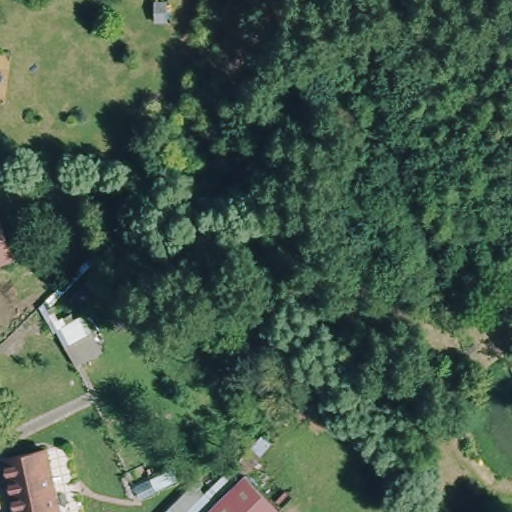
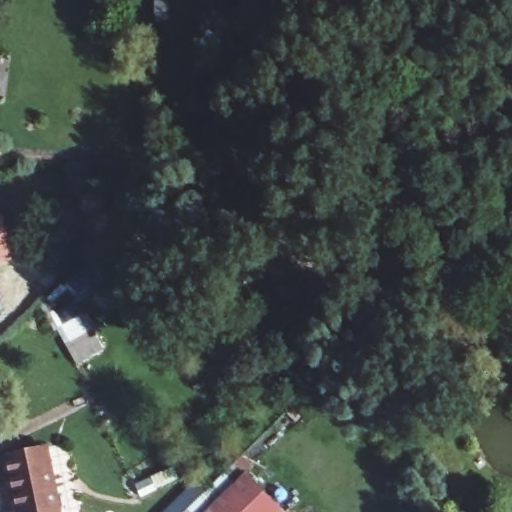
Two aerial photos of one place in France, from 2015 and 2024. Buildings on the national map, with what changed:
unchanged [(17,255),(0,260),(0,209),(1,209),(17,255)]
unchanged [(20,512),(10,456),(48,448),(62,512),(20,512)]
unchanged [(209,491),(230,472),(242,481),(250,473),(285,512),(169,512),(200,482),(209,491)]

